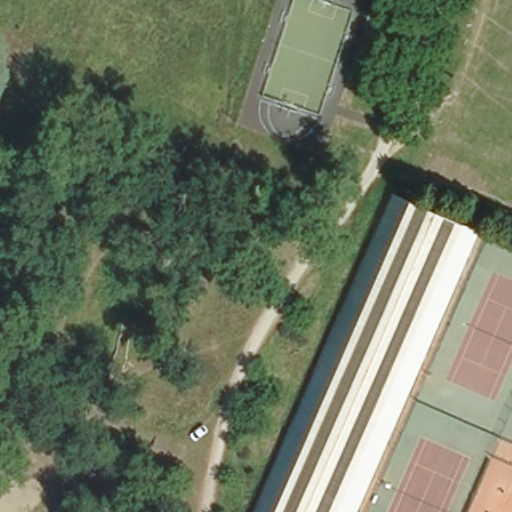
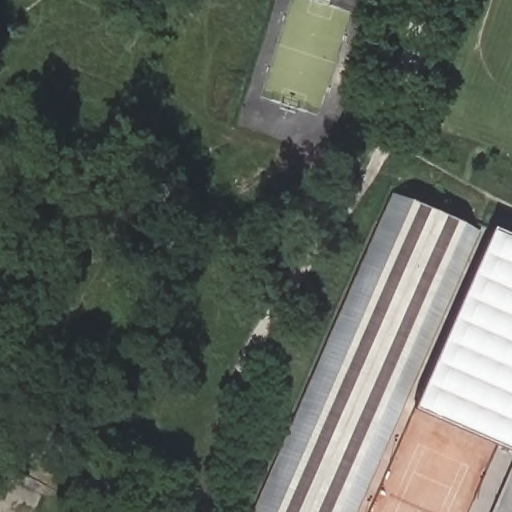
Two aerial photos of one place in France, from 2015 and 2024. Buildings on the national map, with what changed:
unchanged [(398,199),(477,232),(349,512),(248,512),(387,208),(392,196),(398,199)]
new [(413,407),(490,231),(512,240),(512,451),(413,407)]

